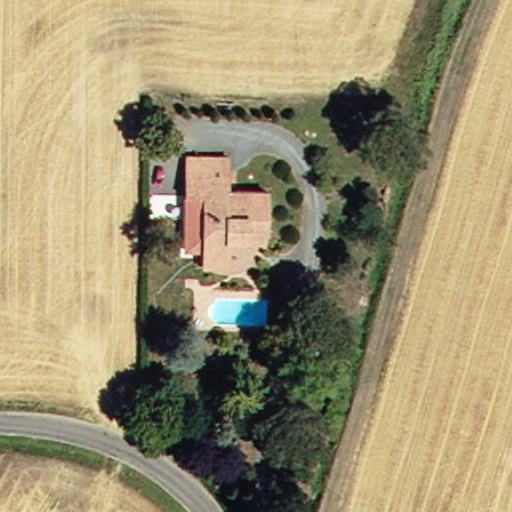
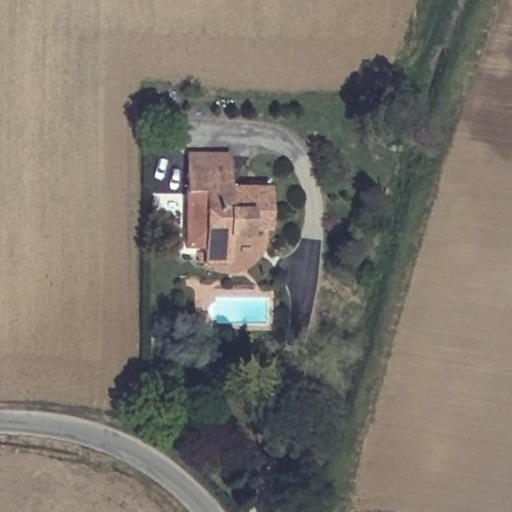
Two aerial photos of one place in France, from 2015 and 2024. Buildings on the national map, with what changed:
unchanged [(199,271),(199,262),(200,245),(181,245),(183,175),(188,175),(188,156),(227,157),(226,189),(265,190),(264,228),(251,228),(251,239),(227,238),(226,262),(226,272),(199,271)]

